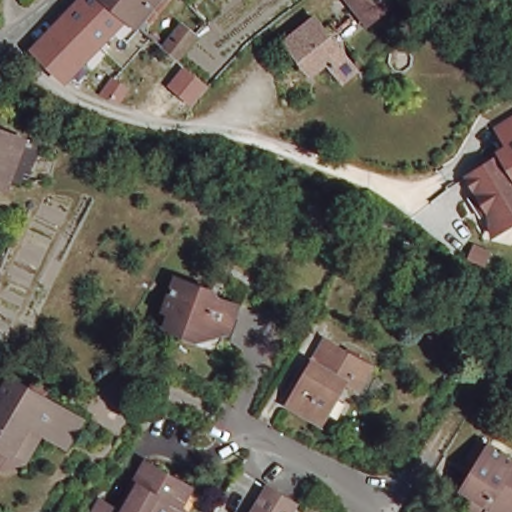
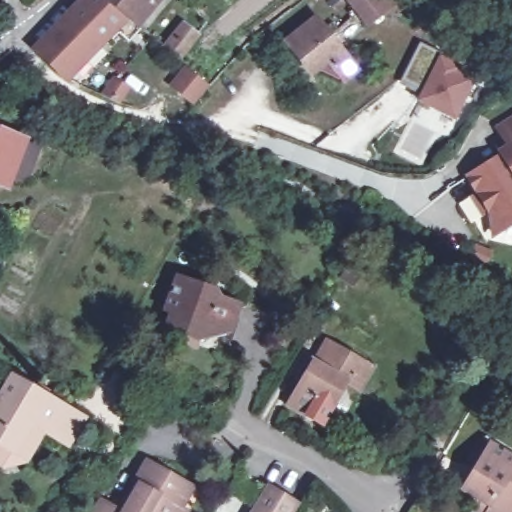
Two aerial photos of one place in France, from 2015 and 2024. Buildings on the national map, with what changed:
unchanged [(73,0),(151,0),(132,21),(120,10),(61,73),(32,46),(73,0)]
unchanged [(368,25),(348,0),(389,0),(393,5),(368,25)]
unchanged [(342,85),(337,78),(320,71),(312,78),(295,53),(280,34),(311,10),(350,62),(358,72),(342,85)]
unchanged [(183,25),(197,36),(178,60),(164,48),(183,25)]
new [(422,92),(400,81),(418,43),(443,53),(440,60),(458,68),(457,73),(472,80),(454,119),(419,101),(422,92)]
new [(185,65),(210,86),(195,105),(168,84),(185,65)]
unchanged [(112,79),(127,89),(117,103),(97,95),(100,90),(104,91),(112,79)]
unchanged [(465,194),(474,189),(465,173),(506,146),(493,126),(512,113),(512,217),(490,231),(487,208),(477,214),(465,194)]
unchanged [(7,186),(0,182),(0,131),(23,140),(7,186)]
unchanged [(177,334),(152,325),(157,310),(149,307),(161,276),(197,289),(195,294),(220,304),(212,330),(199,326),(192,340),(177,334)]
unchanged [(370,381),(364,391),(351,383),(327,424),(293,405),(317,364),(331,341),(350,352),(377,368),(370,381)]
unchanged [(0,437),(0,367),(3,362),(63,398),(73,404),(57,432),(47,425),(34,417),(16,447),(4,439),(0,437)]
unchanged [(471,503),(457,495),(473,468),(463,462),(475,445),(485,451),(512,467),(512,512),(466,512),(471,503)]
unchanged [(136,484),(149,462),(193,488),(182,508),(188,512),(120,512),(136,484)]
unchanged [(267,488),(293,505),(288,512),(252,512),(267,488)]
unchanged [(102,502),(119,512),(96,512),(102,502)]

